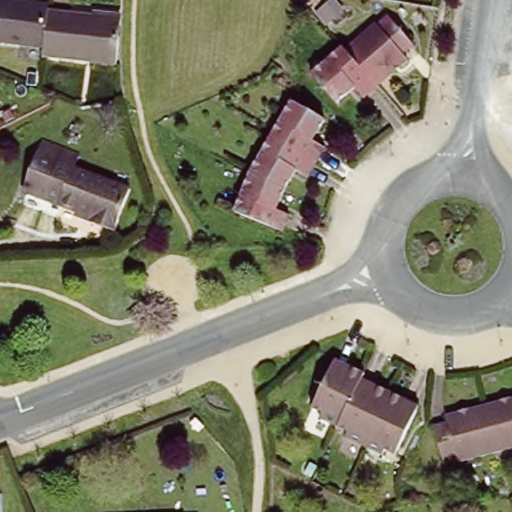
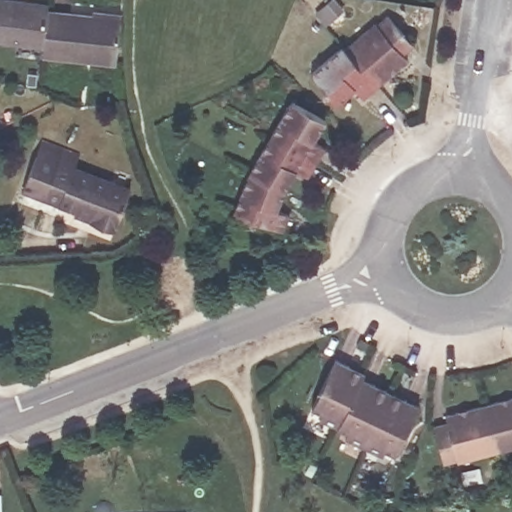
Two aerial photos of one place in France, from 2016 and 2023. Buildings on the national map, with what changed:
unchanged [(0,40),(0,2),(50,7),(49,16),(46,45),(0,40)]
unchanged [(319,16),(327,8),(338,19),(329,26),(319,16)]
unchanged [(336,54),(376,20),(379,22),(388,14),(413,41),(404,50),(409,55),(369,89),(336,54)]
unchanged [(46,45),(49,16),(116,22),(113,63),(45,57),(46,45)]
unchanged [(317,70),(336,54),(369,89),(364,93),(359,87),(343,101),(317,70)]
unchanged [(296,98),(324,123),(308,137),(317,146),(293,170),(284,163),(276,173),(274,172),(238,159),(236,158),(296,98)]
unchanged [(48,151),(67,159),(49,206),(29,198),(48,151)]
unchanged [(83,166),(79,176),(133,198),(118,242),(95,232),(98,225),(49,206),(67,159),(83,166)]
unchanged [(266,204),(279,207),(276,224),(228,214),(238,159),(274,172),(266,204)]
unchanged [(347,433),(319,418),(321,414),(309,408),(334,362),(363,376),(361,381),(384,392),(357,445),(344,438),(347,433)]
unchanged [(384,392),(418,409),(394,456),(384,450),(380,457),(357,445),(384,392)]
unchanged [(442,426),(439,417),(454,413),(512,397),(512,449),(457,464),(457,463),(439,466),(429,429),(442,426)]

